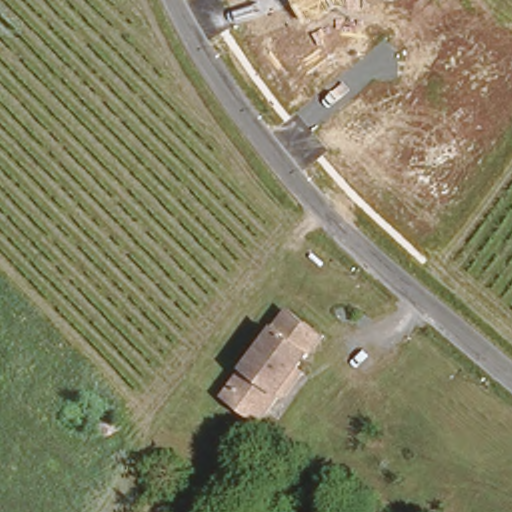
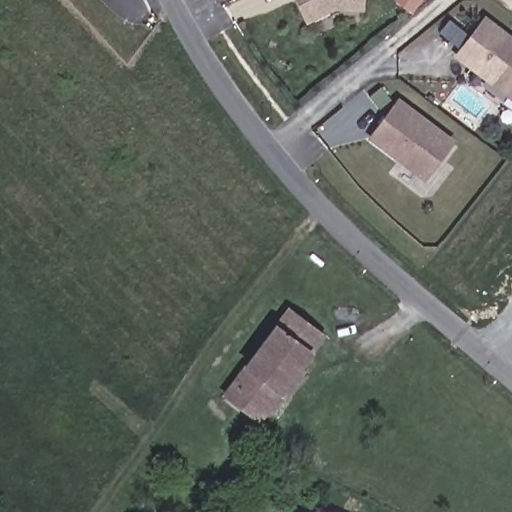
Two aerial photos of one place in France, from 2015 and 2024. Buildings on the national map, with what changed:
unchanged [(334,9),(300,24),(289,0),(364,0),(363,12),(334,9)]
new [(454,56),(485,15),(512,36),(512,100),(454,56)]
new [(426,181),(368,138),(399,96),(456,140),(426,181)]
unchanged [(222,385),(229,376),(280,310),(286,302),(319,328),(318,329),(274,387),(262,402),(254,411),(222,385)]

